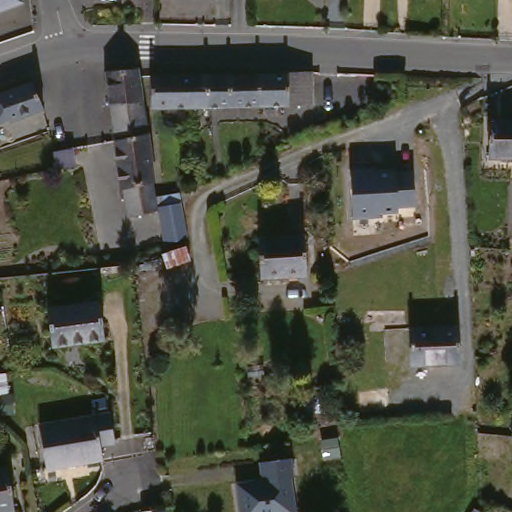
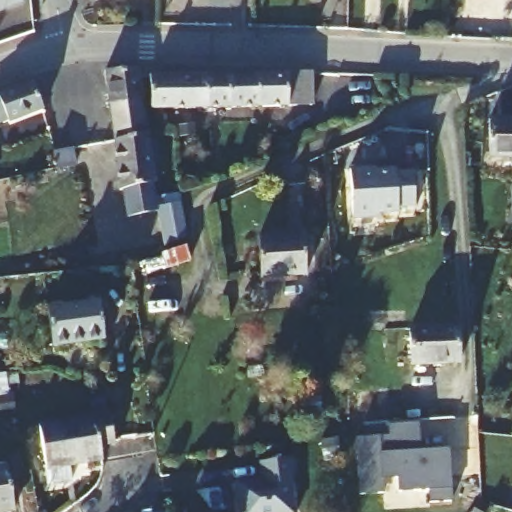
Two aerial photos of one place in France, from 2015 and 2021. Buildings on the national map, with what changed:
unchanged [(0,11),(0,0),(23,0),(24,2),(0,11)]
unchanged [(139,63),(140,70),(143,96),(111,100),(107,66),(139,63)]
unchanged [(260,68),(313,67),(313,100),(260,102),(260,68)]
unchanged [(208,69),(260,68),(260,102),(209,104),(208,69)]
unchanged [(152,105),(151,70),(208,69),(209,104),(154,105),(152,105)]
unchanged [(0,117),(0,90),(39,76),(49,104),(15,116),(14,113),(0,117)]
unchanged [(111,100),(143,96),(150,134),(158,208),(127,212),(116,136),(111,100)]
unchanged [(484,158),(485,119),(512,119),(512,158),(484,158)]
unchanged [(75,166),(55,169),(52,151),(72,148),(75,166)]
unchanged [(399,206),(398,212),(383,213),(383,217),(354,219),(350,169),(414,164),(417,206),(399,206)]
unchanged [(178,189),(188,236),(182,238),(171,241),(161,192),(178,189)]
unchanged [(303,230),(304,271),(261,273),(259,233),(303,230)]
unchanged [(103,339),(52,346),(47,308),(98,301),(103,339)]
unchanged [(463,322),(464,358),(416,360),(414,325),(463,322)]
unchanged [(38,421),(108,408),(113,435),(114,438),(99,441),(101,453),(44,463),(38,421)]
new [(389,436),(388,421),(418,419),(420,454),(428,454),(428,451),(448,449),(451,501),(429,502),(429,489),(398,491),(397,477),(382,478),(383,492),(359,494),(356,438),(389,436)]
unchanged [(336,438),(339,456),(323,458),(321,440),(336,438)]
unchanged [(289,457),(292,475),(289,476),(294,512),(239,512),(235,482),(250,480),(261,478),(259,461),(289,457)]
unchanged [(0,507),(0,465),(12,463),(19,504),(0,507)]

